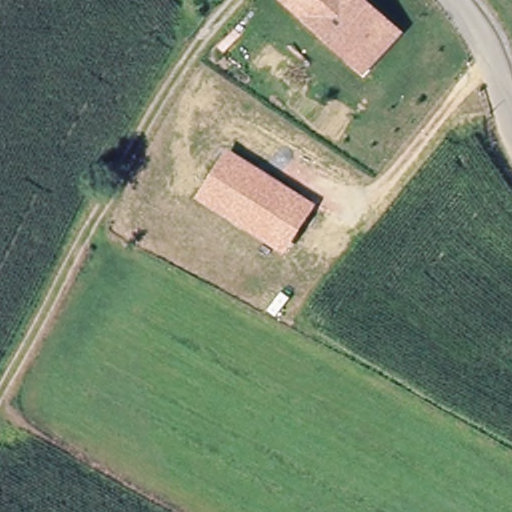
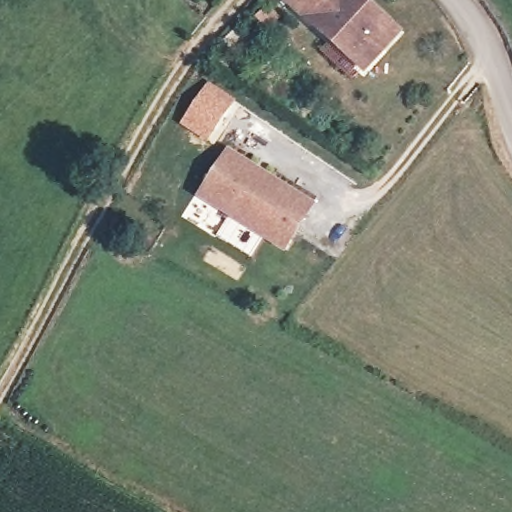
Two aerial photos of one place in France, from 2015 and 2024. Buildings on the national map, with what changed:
unchanged [(290,0),(367,0),(400,27),(383,47),(368,66),(351,52),(290,0)]
new [(237,100),(209,144),(181,126),(209,82),(237,100)]
unchanged [(317,204),(285,255),(194,197),(227,146),(317,204)]

